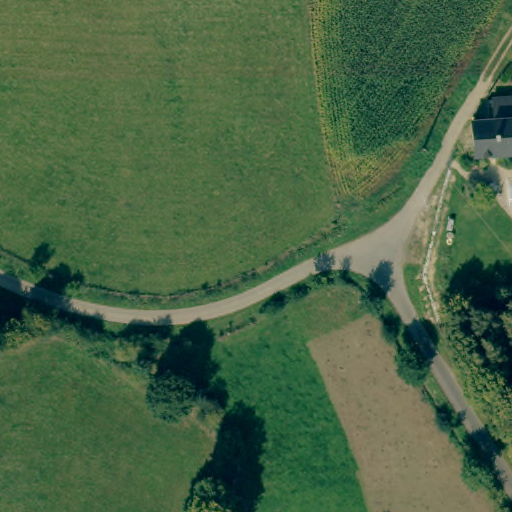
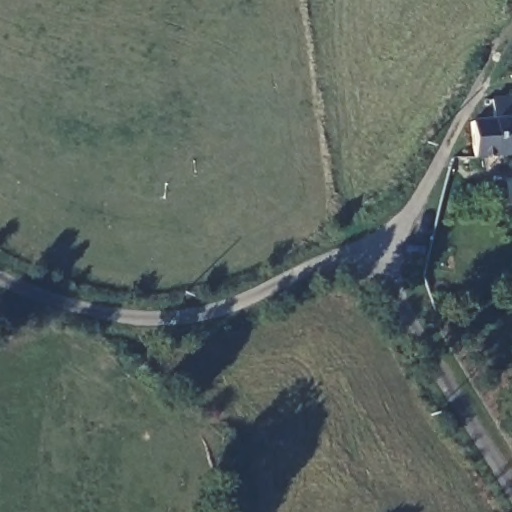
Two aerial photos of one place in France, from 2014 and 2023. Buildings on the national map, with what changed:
unchanged [(495,99),(512,98),(512,151),(475,153),(474,121),(496,120),(495,99)]

